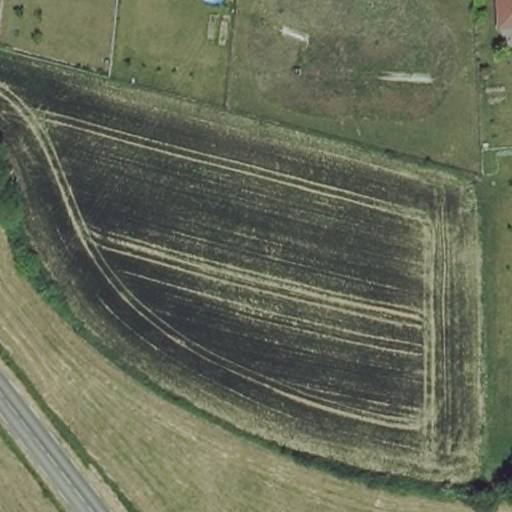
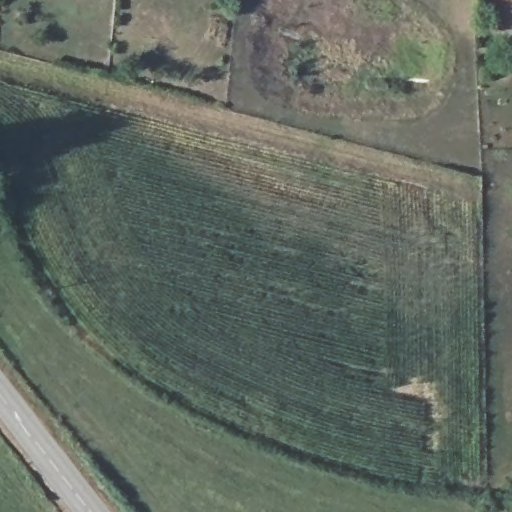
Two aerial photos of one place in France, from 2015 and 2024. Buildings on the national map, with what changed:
unchanged [(498,7),(497,0),(512,0),(512,23),(500,24),(498,7)]

